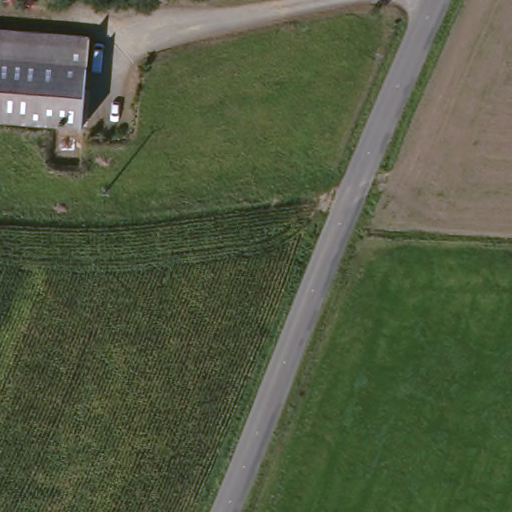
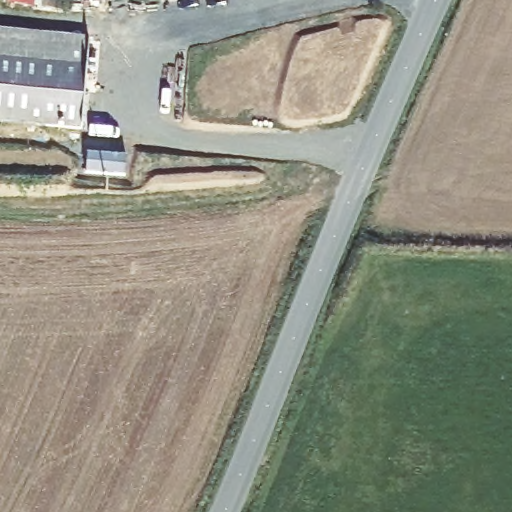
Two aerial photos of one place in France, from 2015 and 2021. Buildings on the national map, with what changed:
unchanged [(77,135),(0,129),(0,37),(85,44),(77,135)]

